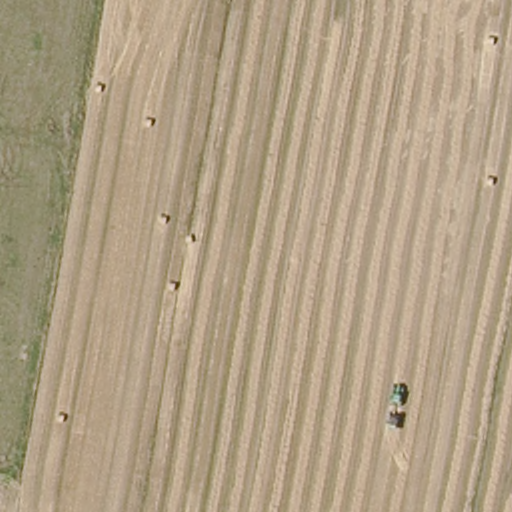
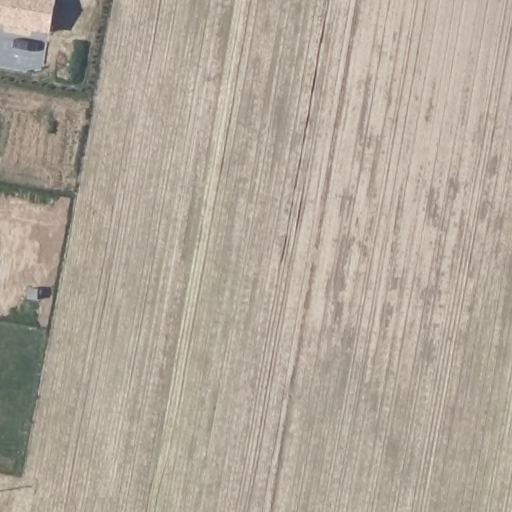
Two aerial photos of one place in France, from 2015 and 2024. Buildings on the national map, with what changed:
new [(0,24),(0,0),(57,0),(49,33),(0,24)]

